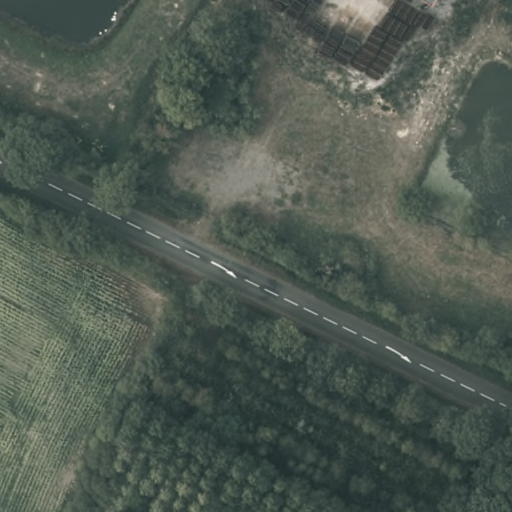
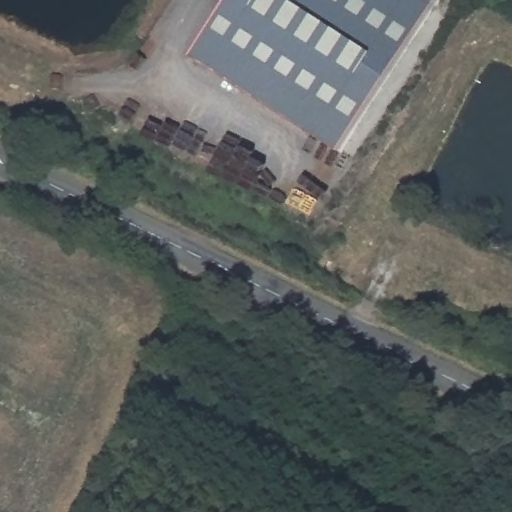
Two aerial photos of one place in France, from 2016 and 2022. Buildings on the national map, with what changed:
new [(339,153),(190,56),(227,0),(423,0),(434,8),(339,153)]
unchanged [(434,8),(423,0),(439,0),(434,8)]

